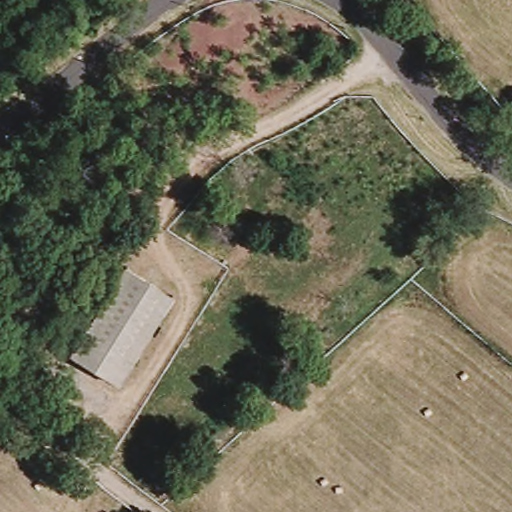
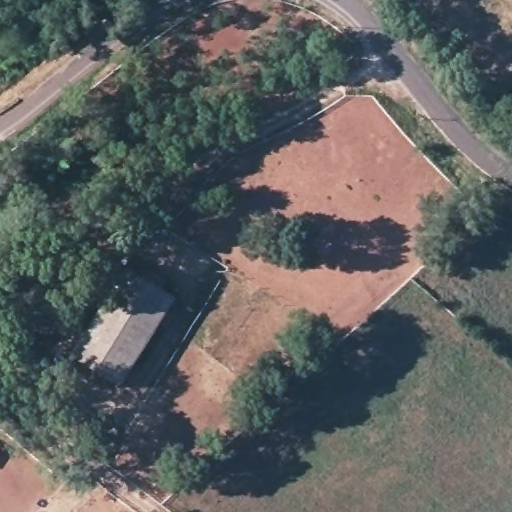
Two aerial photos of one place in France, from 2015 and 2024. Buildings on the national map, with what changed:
unchanged [(117,281),(109,274),(125,253),(134,259),(179,290),(118,374),(72,342),(117,281)]

